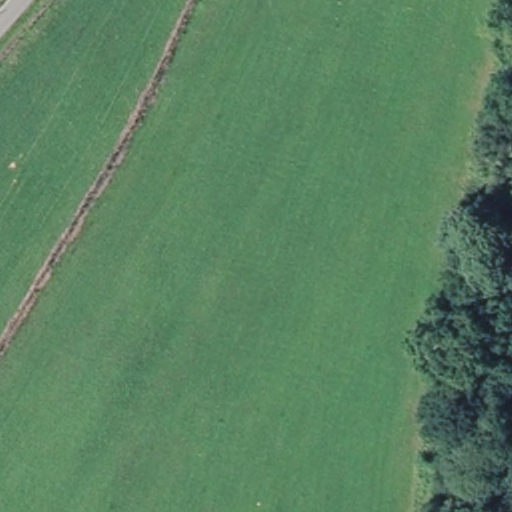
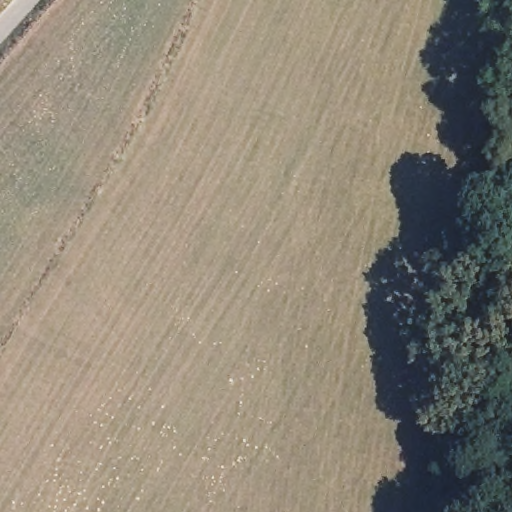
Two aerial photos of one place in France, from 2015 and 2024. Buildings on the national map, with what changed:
[]

